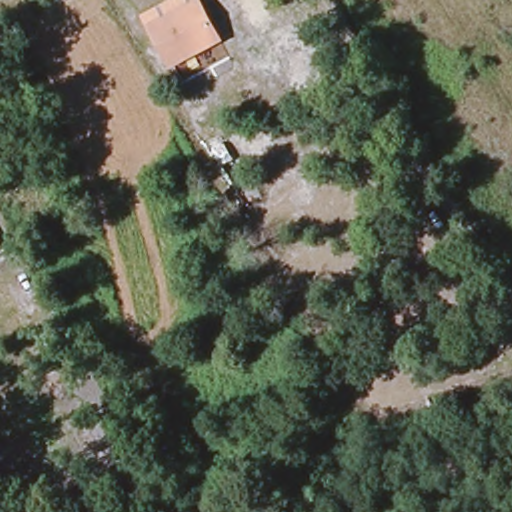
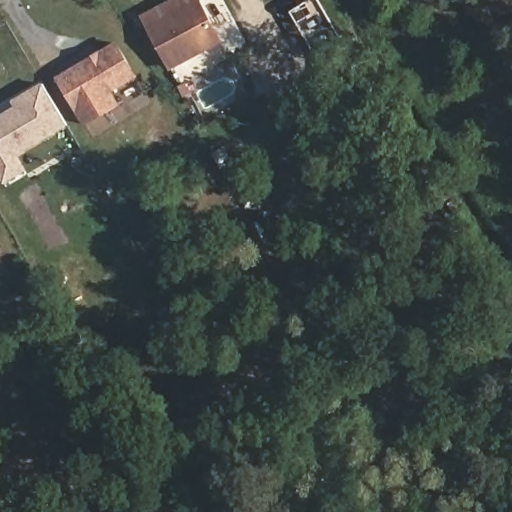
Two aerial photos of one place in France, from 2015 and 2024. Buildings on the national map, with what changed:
unchanged [(198,0),(218,39),(169,65),(148,25),(194,0),(198,0)]
new [(85,126),(55,79),(116,41),(138,77),(112,92),(120,105),(85,126)]
new [(18,108),(15,102),(43,84),(68,124),(18,155),(28,170),(8,183),(0,169),(0,119),(18,108)]
unchanged [(2,254),(0,256),(0,250),(2,254)]

